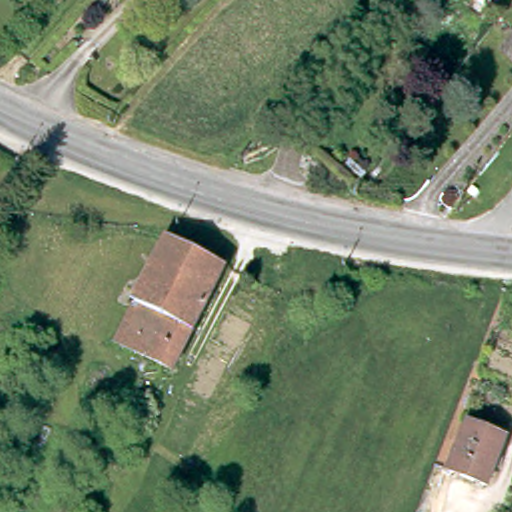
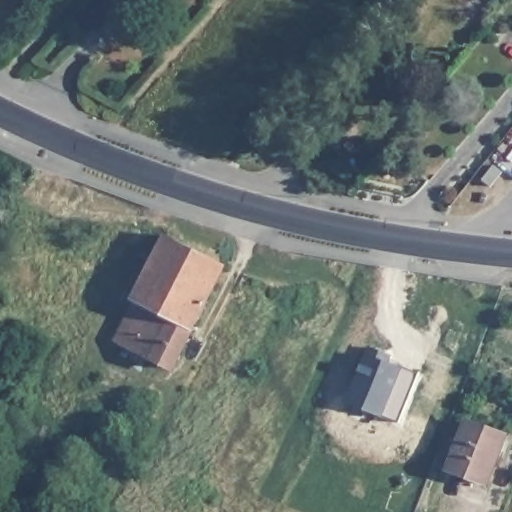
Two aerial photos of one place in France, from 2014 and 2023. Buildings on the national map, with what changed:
unchanged [(171,320),(134,303),(166,237),(225,263),(174,369),(152,359),(171,320)]
unchanged [(115,342),(134,303),(171,320),(152,359),(115,342)]
new [(399,423),(348,403),(370,349),(389,356),(386,360),(418,373),(399,423)]
unchanged [(504,435),(487,483),(454,470),(449,468),(466,420),(472,422),(504,435)]

